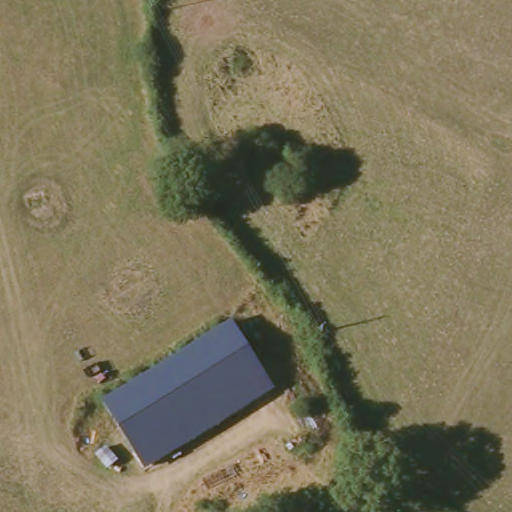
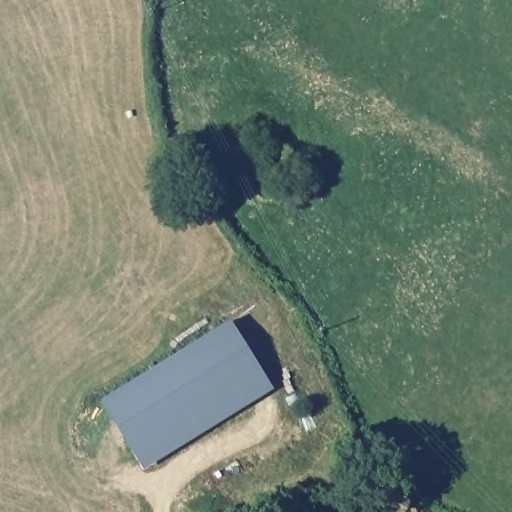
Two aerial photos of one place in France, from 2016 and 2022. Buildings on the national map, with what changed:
unchanged [(109,407),(237,327),(269,378),(141,458),(109,407)]

